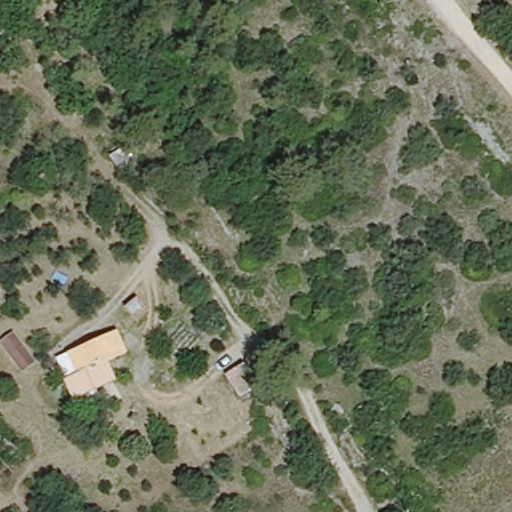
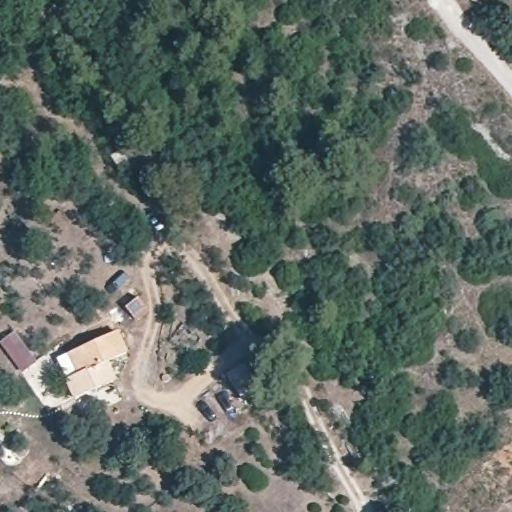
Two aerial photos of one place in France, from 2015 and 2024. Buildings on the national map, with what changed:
unchanged [(150,313),(137,323),(125,307),(138,297),(150,313)]
unchanged [(37,363),(23,373),(0,342),(14,332),(37,363)]
unchanged [(122,380),(78,399),(70,381),(85,374),(77,353),(123,333),(132,353),(114,361),(122,380)]

